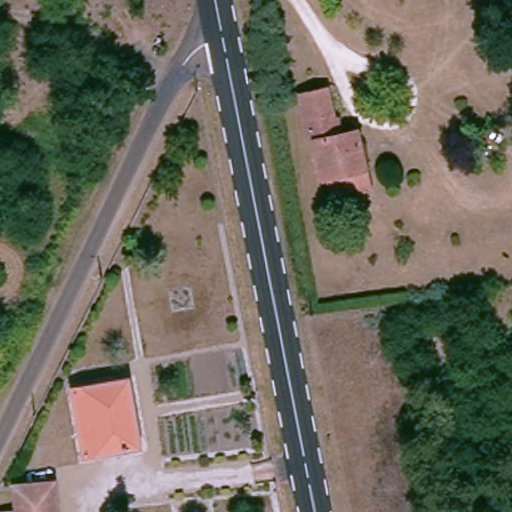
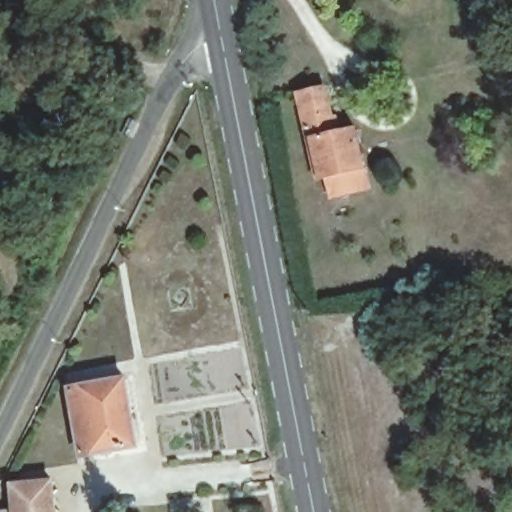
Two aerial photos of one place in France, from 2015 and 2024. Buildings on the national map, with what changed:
unchanged [(512,43),(506,24),(512,22),(512,43)]
unchanged [(338,90),(346,132),(367,130),(376,170),(331,181),(312,95),(338,90)]
unchanged [(84,453),(73,390),(130,380),(141,443),(101,451),(84,453)]
unchanged [(17,498),(52,494),(54,512),(19,512),(17,498)]

